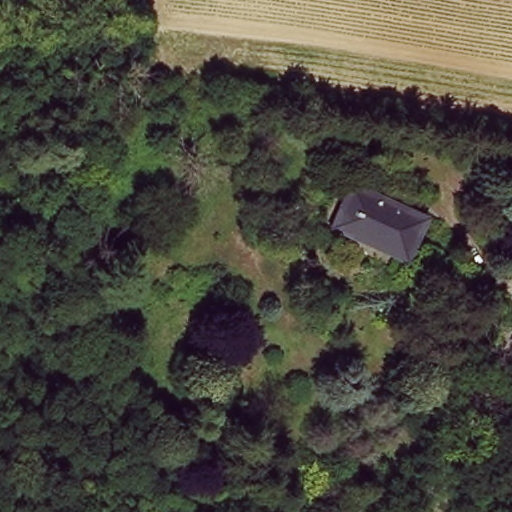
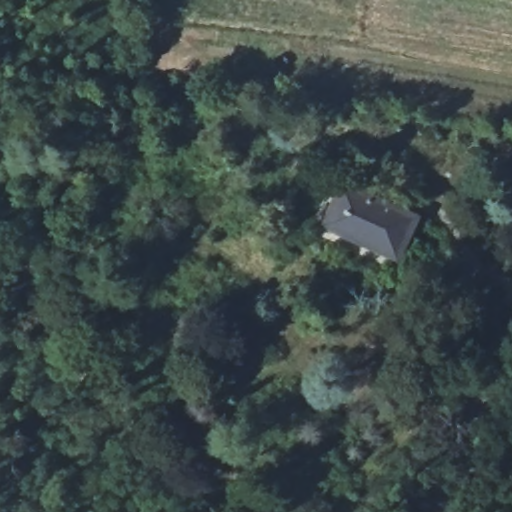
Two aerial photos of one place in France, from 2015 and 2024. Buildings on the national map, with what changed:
unchanged [(399,258),(326,225),(337,201),(345,182),(353,186),(375,196),(383,200),(419,216),(399,258)]

